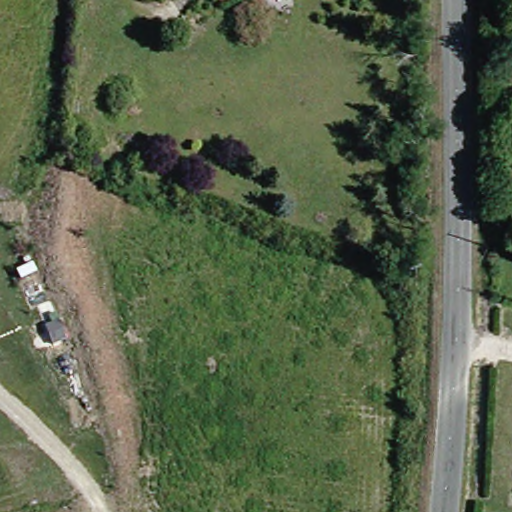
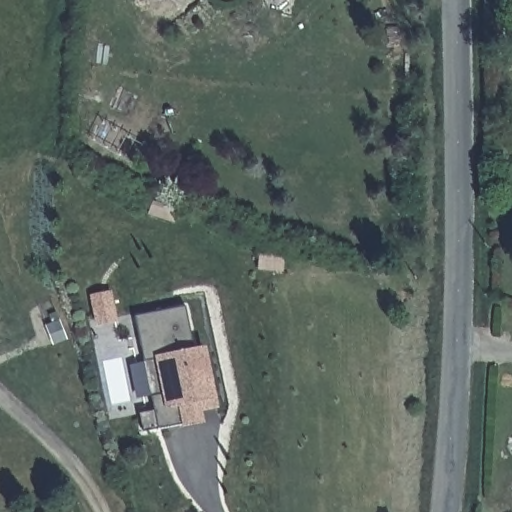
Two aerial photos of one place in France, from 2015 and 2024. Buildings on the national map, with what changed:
new [(101,332),(99,320),(94,294),(110,291),(115,317),(119,329),(101,332)]
new [(139,413),(154,410),(151,396),(144,362),(134,316),(186,305),(195,350),(204,348),(214,396),(216,408),(200,411),(199,400),(181,403),(185,424),(158,429),(143,432),(139,413)]

